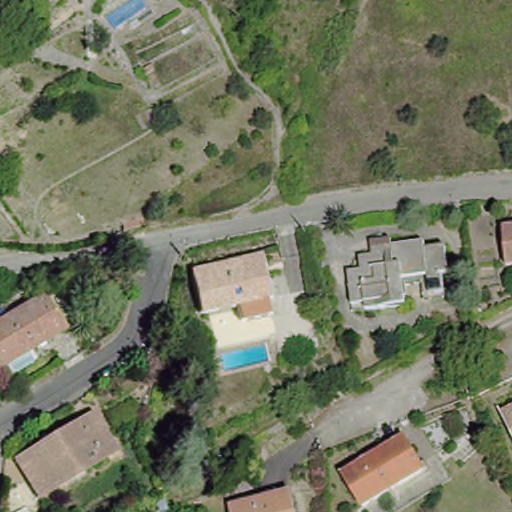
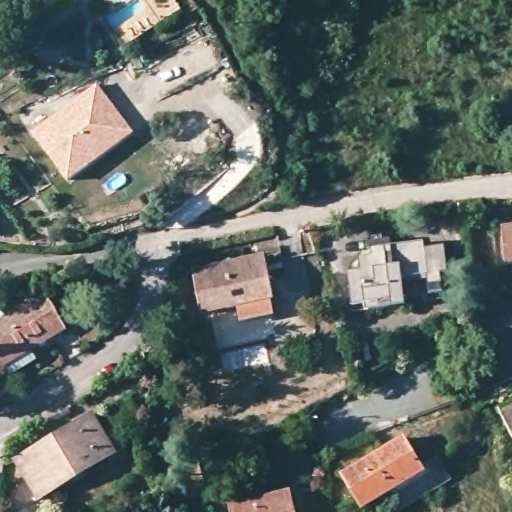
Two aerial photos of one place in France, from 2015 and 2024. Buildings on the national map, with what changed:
unchanged [(27,10),(38,0),(53,0),(34,18),(27,10)]
new [(132,133),(69,180),(33,132),(97,87),(132,133)]
unchanged [(512,232),(512,269),(505,270),(500,234),(512,232)]
unchanged [(405,305),(368,311),(365,301),(353,303),(344,269),(360,265),(359,256),(376,252),(373,242),(388,240),(391,248),(422,243),(423,250),(445,246),(450,272),(444,273),(447,292),(432,294),(428,276),(407,279),(399,282),(405,305)]
unchanged [(263,255),(272,297),(268,298),(271,315),(237,321),(234,305),(198,312),(189,271),(263,255)]
unchanged [(58,330),(24,350),(30,362),(5,377),(0,369),(0,322),(39,300),(58,330)]
unchanged [(512,412),(512,435),(503,416),(512,412)]
unchanged [(11,467),(83,423),(104,460),(33,503),(11,467)]
unchanged [(404,483),(362,508),(342,474),(401,437),(418,467),(421,472),(404,483)]
unchanged [(203,494),(197,462),(213,457),(221,490),(203,494)]
unchanged [(228,509),(290,496),(293,512),(229,512),(228,509)]

